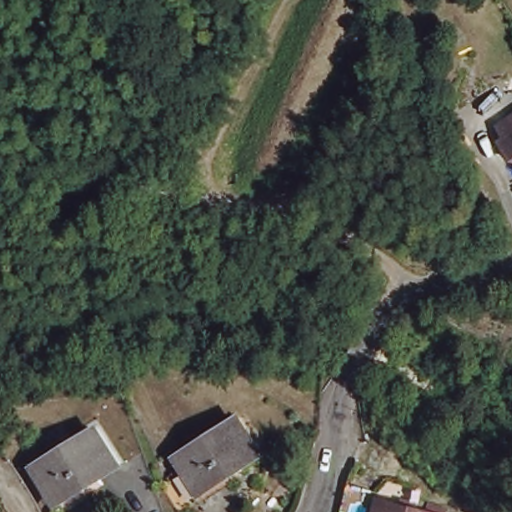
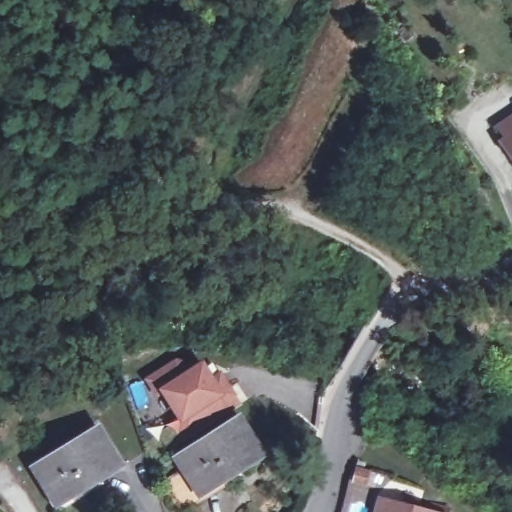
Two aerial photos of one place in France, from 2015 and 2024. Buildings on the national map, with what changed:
unchanged [(497,134),(489,121),(506,110),(512,106),(512,165),(492,137),(497,134)]
new [(212,421),(185,438),(174,421),(179,418),(161,390),(156,393),(147,379),(174,361),(202,367),(209,380),(218,375),(226,388),(237,405),(212,421)]
unchanged [(261,458),(193,495),(171,452),(236,415),(261,458)]
unchanged [(34,466),(95,428),(118,464),(56,502),(34,466)]
unchanged [(430,512),(379,512),(382,500),(430,512)]

